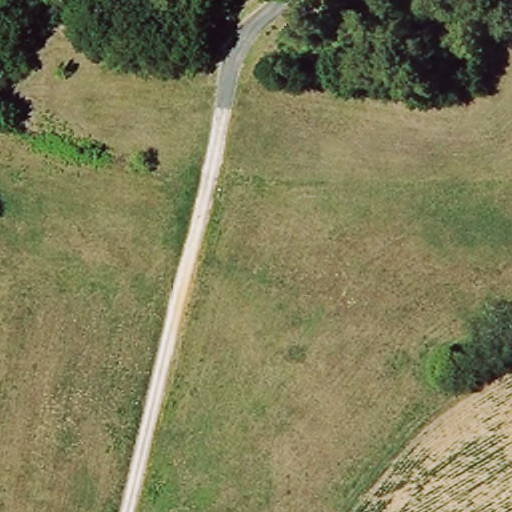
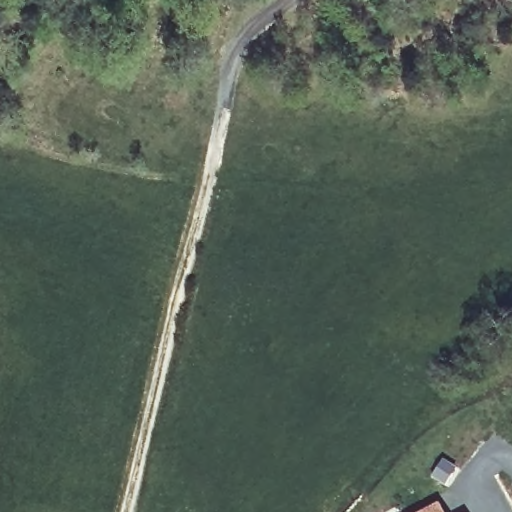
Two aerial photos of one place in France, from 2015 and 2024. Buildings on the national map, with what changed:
new [(439,502),(445,512),(419,512),(439,502)]

